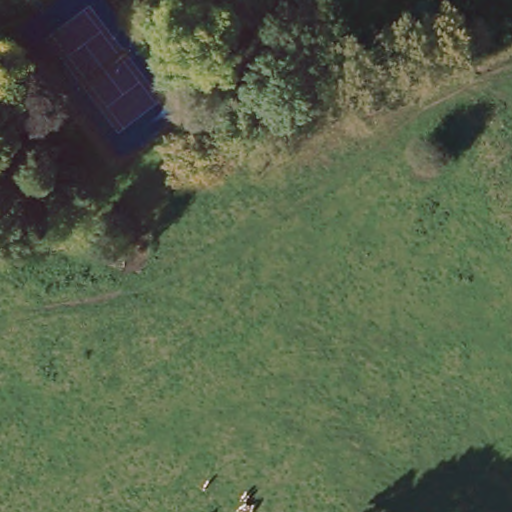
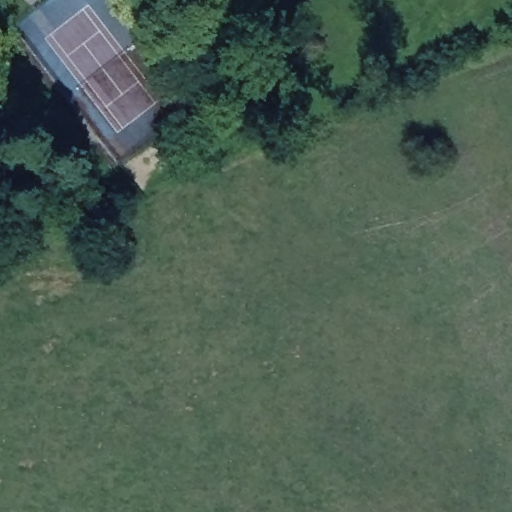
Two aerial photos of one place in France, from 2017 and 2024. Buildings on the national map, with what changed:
[]

